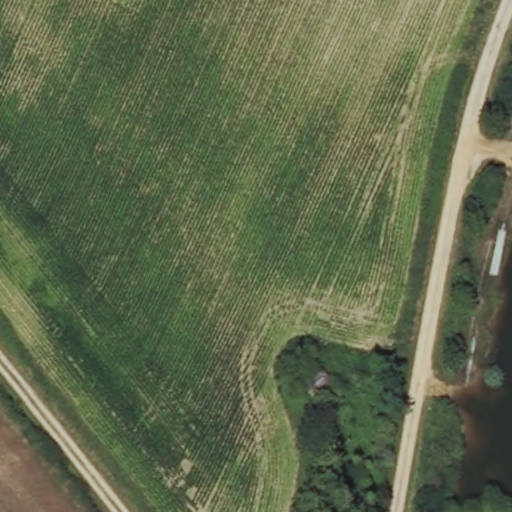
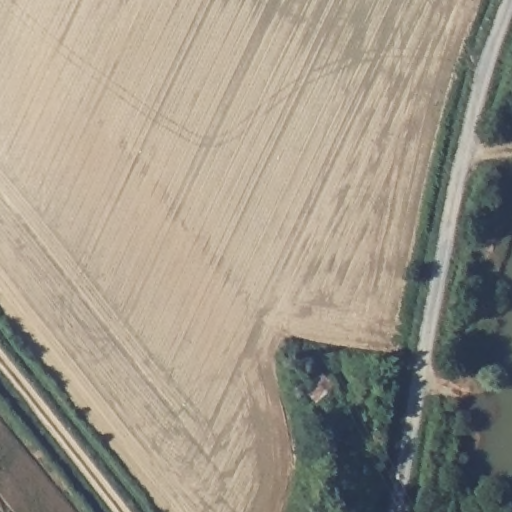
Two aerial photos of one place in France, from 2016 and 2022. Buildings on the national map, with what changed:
unchanged [(295,373),(306,365),(311,373),(317,370),(325,376),(327,374),(342,385),(320,404),(295,373)]

